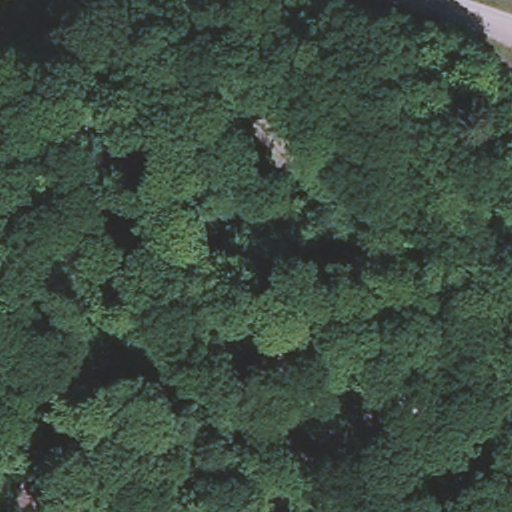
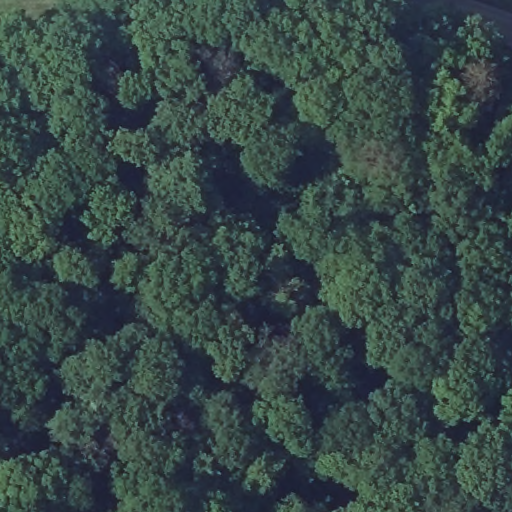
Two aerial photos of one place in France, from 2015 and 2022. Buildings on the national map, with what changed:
[]

